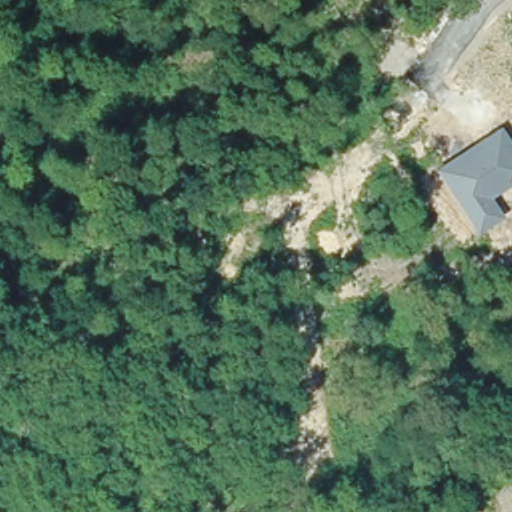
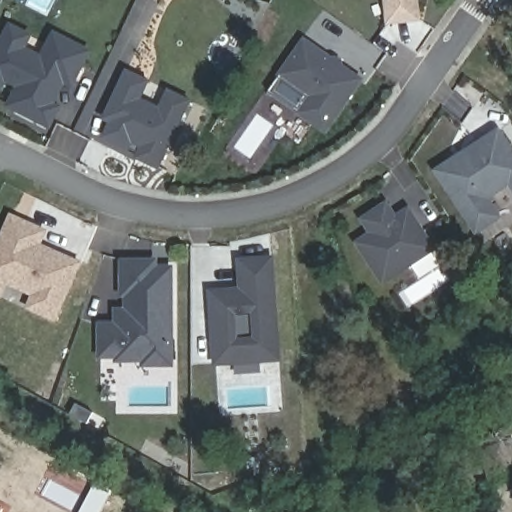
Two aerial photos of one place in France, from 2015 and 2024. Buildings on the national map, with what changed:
new [(389,22),(387,0),(418,0),(420,19),(389,22)]
new [(20,85),(4,77),(0,84),(0,45),(11,25),(29,35),(49,45),(54,33),(88,51),(72,84),(64,80),(52,103),(58,106),(49,124),(16,107),(10,104),(15,93),(20,85)]
new [(326,130),(300,112),(311,95),(281,74),(305,39),(362,78),(326,130)]
new [(158,167),(137,157),(142,146),(132,141),(129,148),(104,137),(111,122),(104,118),(127,70),(148,81),(140,99),(160,108),(169,90),(190,100),(158,167)]
unchanged [(512,143),(512,187),(511,186),(492,199),(505,219),(477,235),(435,169),(500,126),(512,143)]
new [(434,248),(383,281),(358,242),(372,232),(363,219),(387,203),(396,217),(408,209),(434,248)]
new [(0,298),(0,236),(10,213),(49,230),(42,244),(84,262),(57,323),(27,309),(32,295),(6,284),(0,298)]
new [(235,290),(242,289),(243,295),(241,260),(272,258),(280,358),(217,362),(212,291),(235,290)]
new [(102,356),(102,325),(117,325),(117,316),(117,311),(137,311),(137,295),(134,295),(134,261),(166,261),(166,268),(172,268),(172,363),(145,364),(145,359),(107,360),(107,356),(102,356)]
unchanged [(480,445),(512,437),(512,473),(490,478),(480,445)]
unchanged [(420,475),(427,487),(408,497),(402,485),(420,475)]
new [(1,512),(0,512),(0,508),(2,509),(1,512)]

